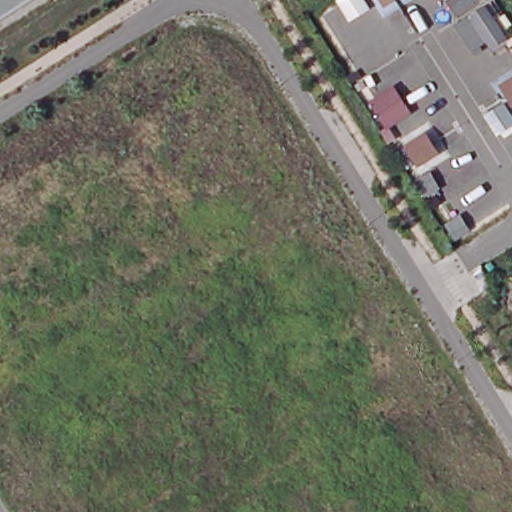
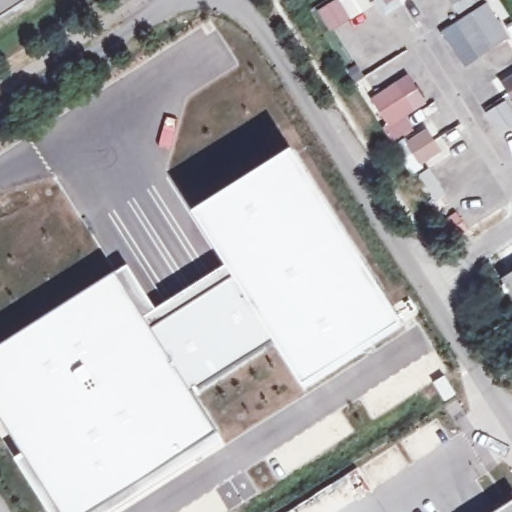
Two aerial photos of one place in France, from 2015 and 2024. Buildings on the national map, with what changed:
unchanged [(32,0),(0,20),(0,0),(32,0)]
new [(336,0),(368,0),(373,8),(332,33),(317,11),(336,0)]
new [(385,0),(392,0),(387,3),(385,0)]
new [(512,98),(503,83),(512,78),(512,98)]
new [(393,93),(405,112),(386,124),(374,105),(393,93)]
new [(512,111),(512,123),(497,131),(485,112),(505,101),(512,111)]
unchanged [(427,132),(439,151),(420,163),(408,144),(427,132)]
new [(293,149),(404,325),(303,391),(272,343),(252,307),(223,265),(190,213),(293,149)]
new [(13,459),(21,453),(3,427),(0,422),(0,346),(127,265),(156,308),(145,316),(175,368),(193,393),(220,433),(160,474),(109,505),(99,512),(48,512),(13,459)]
new [(156,308),(223,265),(252,307),(272,343),(238,366),(193,393),(175,368),(145,316),(156,308)]
new [(512,274),(512,295),(502,280),(512,274)]
new [(512,504),(512,512),(500,512),(512,504)]

